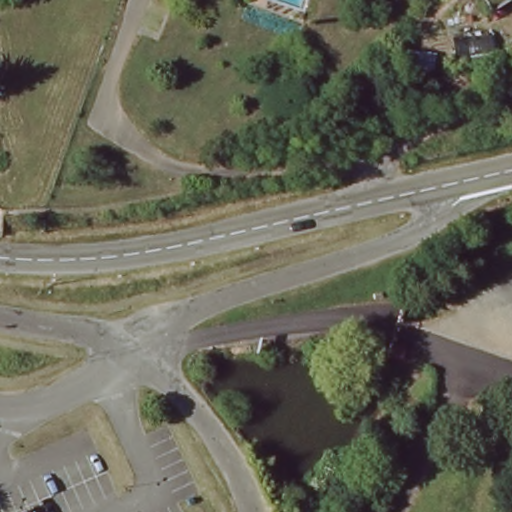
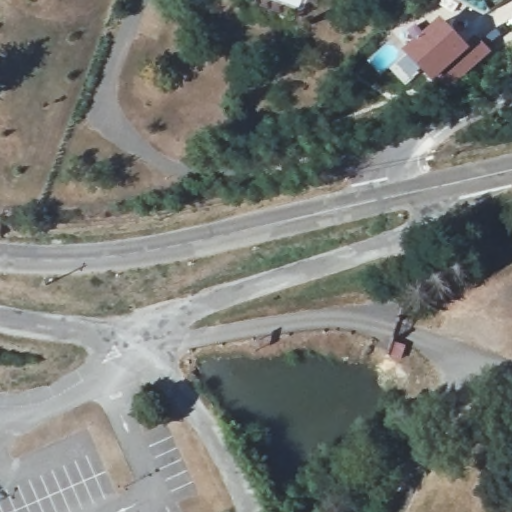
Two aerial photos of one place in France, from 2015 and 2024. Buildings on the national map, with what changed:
new [(492,53),(448,94),(439,83),(433,88),(401,57),(440,20),(471,51),(481,42),(492,53)]

